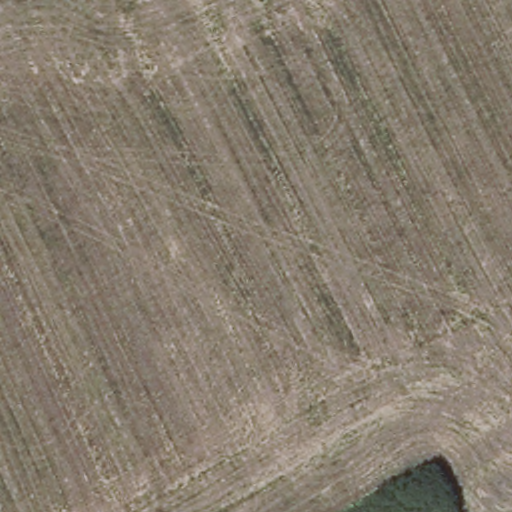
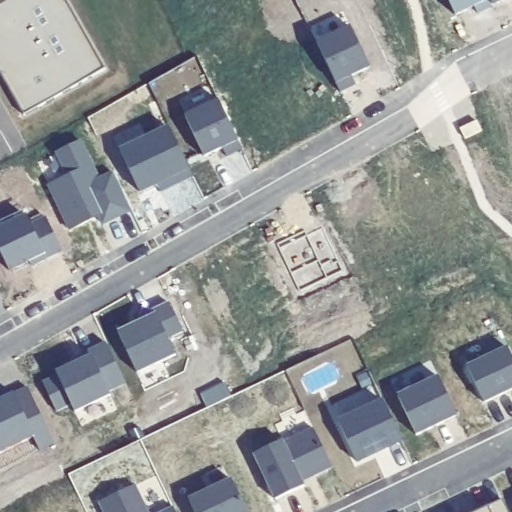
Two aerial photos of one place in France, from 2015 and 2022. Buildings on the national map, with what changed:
new [(107,67),(26,113),(0,68),(0,0),(69,0),(107,67)]
new [(495,4),(480,10),(477,4),(458,13),(452,0),(493,0),(495,4)]
new [(353,25),(372,66),(354,74),(358,83),(343,90),(319,41),(353,25)]
new [(221,98),(245,147),(229,154),(225,145),(207,155),(188,114),(221,98)]
new [(479,118),(484,128),(467,136),(463,126),(479,118)]
new [(159,181),(142,189),(123,149),(172,125),(195,173),(174,183),(162,188),(159,181)]
new [(71,175),(60,151),(84,140),(102,179),(117,172),(134,208),(105,222),(101,214),(73,228),(52,184),(71,175)]
new [(26,213),(30,220),(44,214),(61,249),(48,256),(44,251),(8,269),(0,253),(0,225),(26,213)]
new [(304,231),(306,236),(322,228),(343,271),(299,292),(277,244),(304,231)]
new [(134,328),(136,330),(147,325),(143,318),(173,304),(187,333),(172,340),(180,356),(141,375),(122,334),(134,328)]
new [(58,370),(79,360),(93,354),(92,353),(110,344),(130,385),(113,393),(115,397),(79,413),(75,406),(60,413),(47,384),(62,377),(58,370)]
new [(512,350),(512,389),(487,401),(470,365),(510,345),(512,350)]
new [(441,375),(460,414),(419,433),(400,394),(441,375)]
new [(227,380),(234,394),(218,402),(212,388),(227,380)]
new [(1,401),(0,399),(30,385),(56,441),(42,448),(36,434),(0,451),(0,402),(1,401)]
new [(359,458),(341,422),(386,400),(405,439),(386,448),(360,460),(359,458)]
new [(285,439),(286,441),(316,427),(334,466),(317,474),(313,472),(303,477),(307,484),(278,498),(256,453),(285,439)]
new [(250,512),(197,512),(191,498),(234,478),(250,512)]
new [(151,512),(106,512),(101,500),(137,483),(151,512)]
new [(489,505),(505,498),(512,512),(486,512),(491,509),(489,505)]
new [(179,512),(161,512),(176,505),(179,512)]

